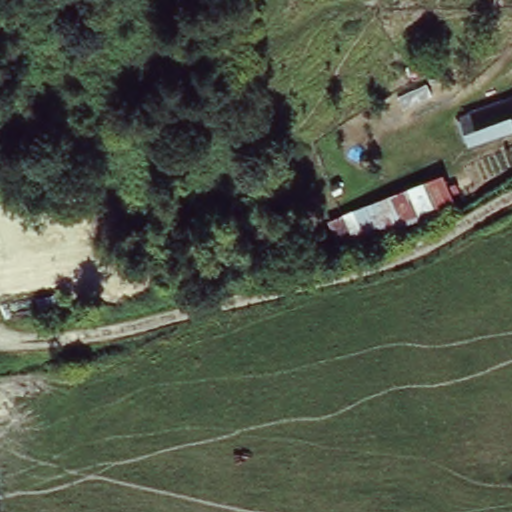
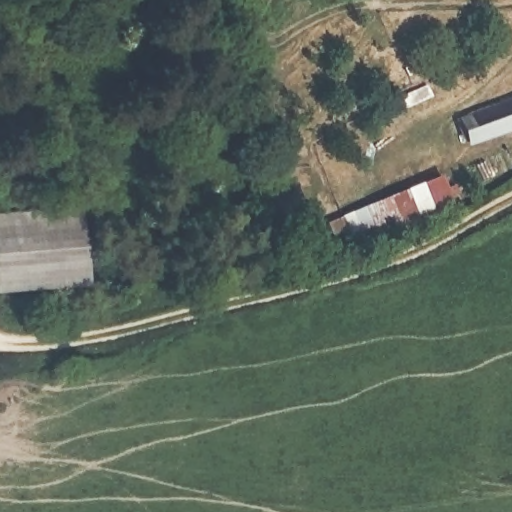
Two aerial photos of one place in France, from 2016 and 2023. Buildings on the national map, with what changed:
unchanged [(504,134),(468,147),(455,115),(512,92),(512,139),(507,141),(504,134)]
unchanged [(441,171),(451,194),(432,202),(434,207),(386,230),(383,222),(362,230),(356,212),(441,171)]
new [(84,209),(89,292),(0,294),(0,215),(84,209)]

